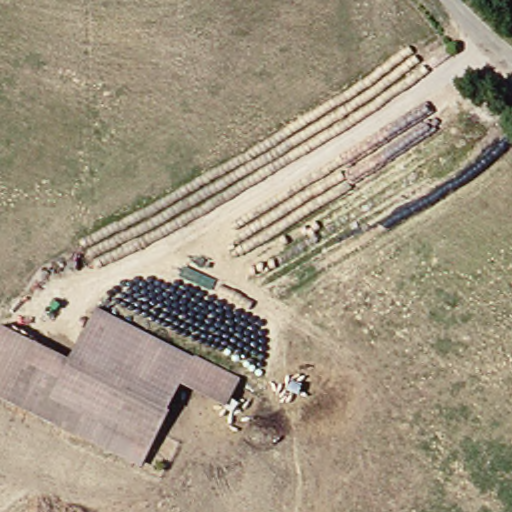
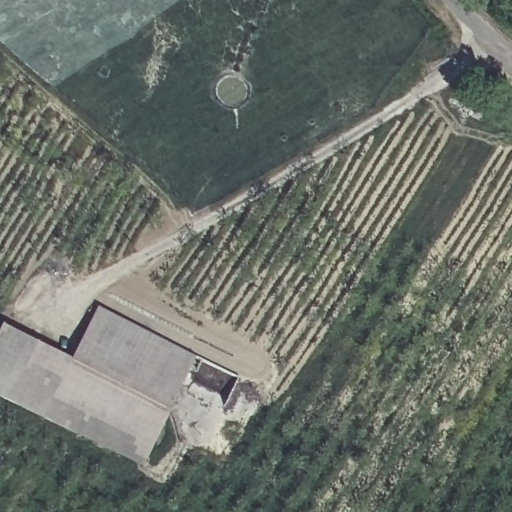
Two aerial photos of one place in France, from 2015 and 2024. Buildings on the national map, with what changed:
unchanged [(71,359),(97,307),(194,357),(179,385),(157,428),(158,428),(149,446),(52,397),(71,359)]
unchanged [(0,395),(0,328),(2,325),(71,359),(52,397),(149,446),(140,464),(0,395)]
unchanged [(194,357),(237,378),(223,407),(179,385),(194,357)]

